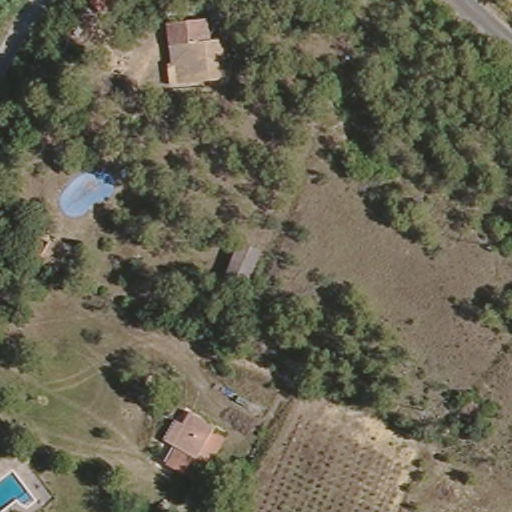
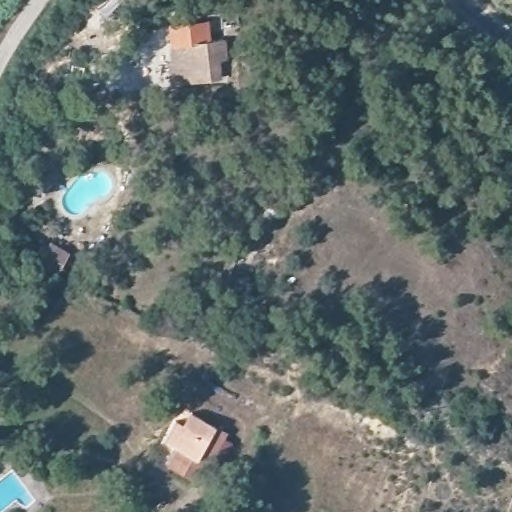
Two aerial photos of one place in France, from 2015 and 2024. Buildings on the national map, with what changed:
unchanged [(196,2),(200,25),(213,23),(218,62),(154,70),(152,49),(162,47),(157,7),(196,2)]
unchanged [(56,270),(38,258),(50,238),(68,249),(56,270)]
unchanged [(263,252),(250,288),(227,281),(242,244),(263,252)]
unchanged [(174,444),(166,440),(177,419),(185,423),(193,410),(217,422),(227,427),(217,445),(199,482),(176,470),(168,467),(178,447),(174,444)]

